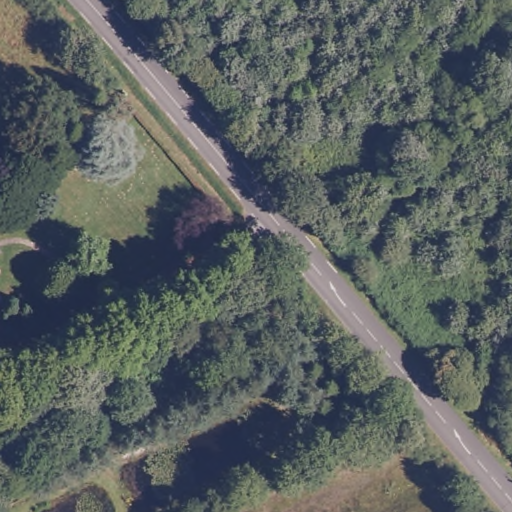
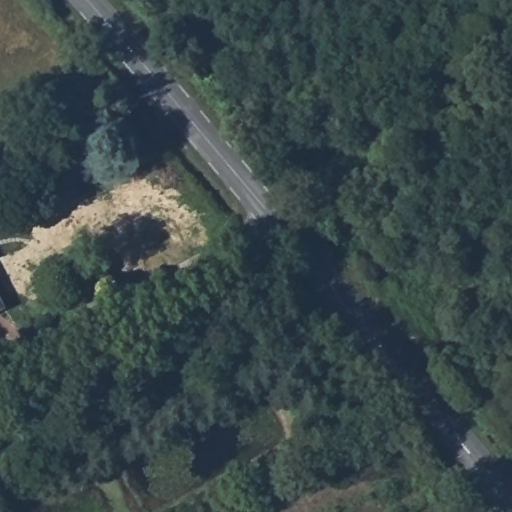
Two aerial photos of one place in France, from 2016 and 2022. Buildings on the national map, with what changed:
unchanged [(8,298),(0,305),(0,288),(8,298)]

